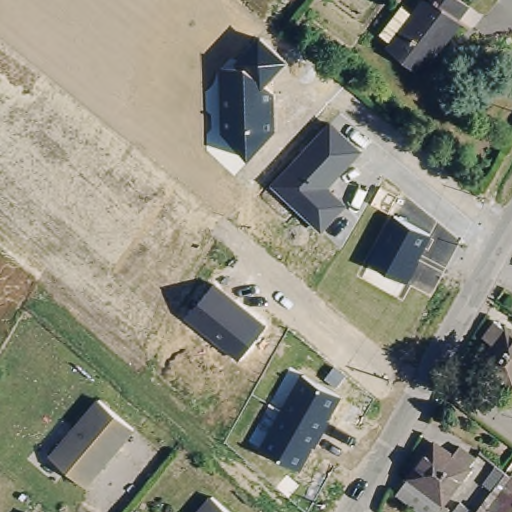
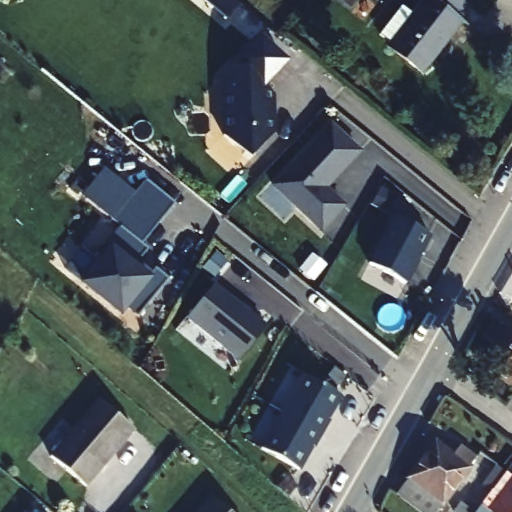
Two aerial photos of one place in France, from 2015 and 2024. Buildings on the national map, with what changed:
unchanged [(468,19),(457,35),(463,40),(444,65),(437,59),(419,82),(387,52),(430,0),(446,0),(468,19)]
unchanged [(286,62),(266,86),(274,91),(276,130),(250,162),(221,131),(221,67),(231,67),(260,37),(286,62)]
unchanged [(361,150),(329,186),(348,204),(321,232),(268,186),(329,122),(361,150)]
new [(126,307),(120,315),(81,283),(99,261),(95,257),(120,227),(113,221),(146,181),(175,204),(142,245),(148,250),(134,267),(147,277),(155,268),(168,280),(138,317),(126,307)]
unchanged [(430,233),(407,282),(366,261),(391,211),(430,233)]
new [(147,277),(134,267),(138,262),(151,272),(147,277)]
unchanged [(266,325),(238,358),(184,316),(214,281),(266,325)]
unchanged [(478,358),(488,346),(478,338),(490,322),(500,330),(501,329),(512,338),(512,391),(496,378),(475,362),(478,358)]
unchanged [(343,396),(298,469),(259,445),(303,373),(343,396)]
unchanged [(133,429),(84,486),(49,457),(98,400),(133,429)]
unchanged [(439,452),(452,462),(459,452),(475,464),(468,474),(468,475),(442,509),(445,512),(412,512),(396,500),(419,470),(435,449),(439,452)]
unchanged [(482,510),(492,496),(482,488),(496,471),(505,477),(511,482),(512,481),(512,512),(483,512),(481,511),(482,510)]
unchanged [(228,512),(197,512),(211,497),(228,512)]
unchanged [(465,512),(457,512),(460,508),(465,512)]
unchanged [(28,512),(30,510),(32,512),(28,512)]
unchanged [(483,512),(479,512),(481,511),(483,512)]

